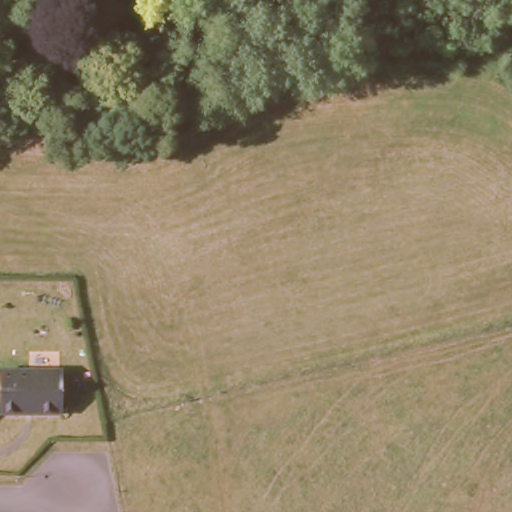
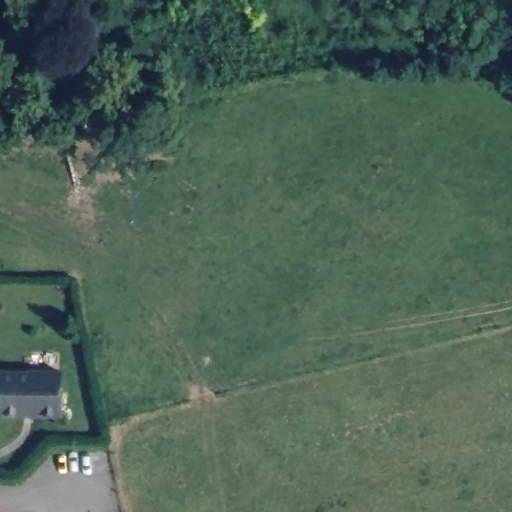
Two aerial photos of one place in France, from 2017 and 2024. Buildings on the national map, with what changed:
unchanged [(60,417),(0,417),(0,368),(63,369),(60,417)]

